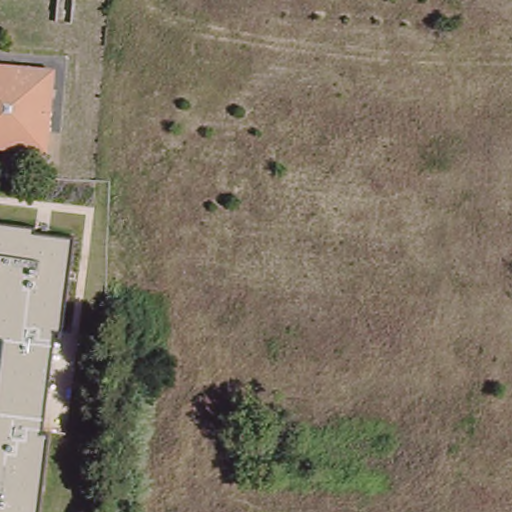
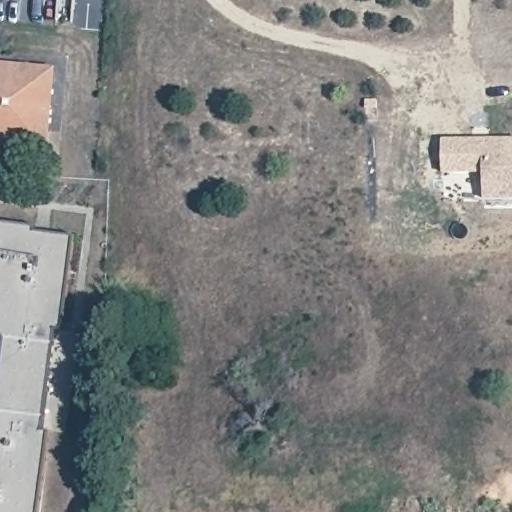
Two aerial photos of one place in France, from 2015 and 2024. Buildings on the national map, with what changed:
unchanged [(36,69),(55,70),(48,150),(0,146),(0,67),(36,69)]
new [(483,174),(443,174),(443,139),(512,139),(512,199),(483,200),(483,174)]
unchanged [(35,226),(34,233),(75,237),(62,333),(55,332),(43,432),(49,432),(40,512),(0,512),(0,222),(35,226)]

